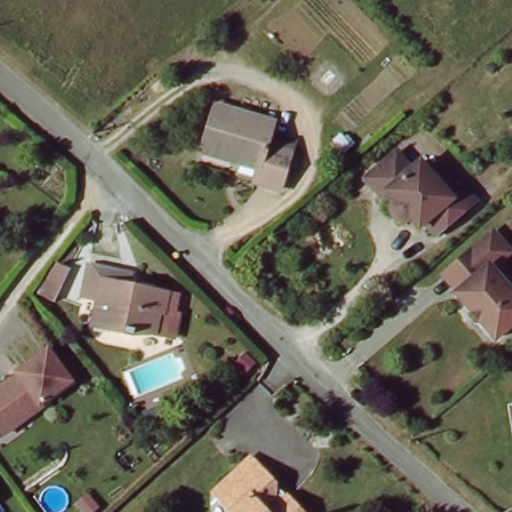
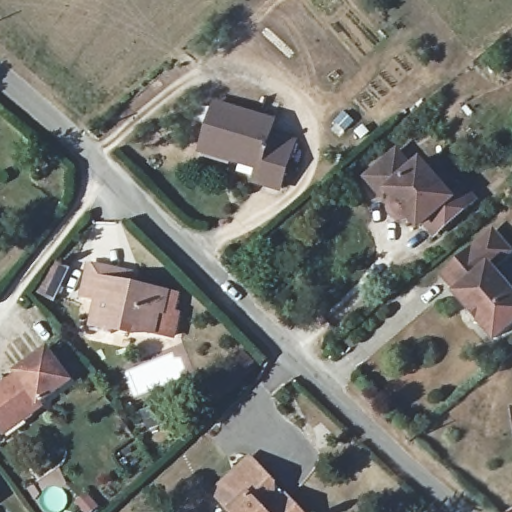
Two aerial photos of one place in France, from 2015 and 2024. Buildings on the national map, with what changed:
unchanged [(207,114),(269,125),(267,140),(289,144),(281,192),(253,186),(255,172),(237,168),(238,161),(201,154),(207,114)]
unchanged [(396,215),(391,212),(389,207),(389,204),(393,195),(387,189),(379,190),(366,174),(395,148),(410,164),(419,156),(435,176),(445,169),(452,177),(458,184),(462,180),(475,194),(433,229),(423,218),(418,222),(411,214),(401,215),(396,215)]
unchanged [(494,230),(512,252),(512,254),(493,270),(512,293),(512,322),(498,334),(461,288),(466,284),(452,265),(494,230)]
unchanged [(97,298),(82,295),(87,264),(122,270),(119,282),(165,290),(162,310),(157,309),(153,331),(130,327),(129,332),(110,328),(92,324),(93,314),(97,298)]
unchanged [(55,279),(48,296),(31,289),(38,272),(55,279)]
unchanged [(12,369),(11,368),(42,344),(65,376),(35,398),(37,401),(17,416),(0,428),(0,379),(12,369)]
unchanged [(240,511),(220,491),(253,458),(280,486),(291,497),(302,509),(298,512),(240,512),(240,511)]

